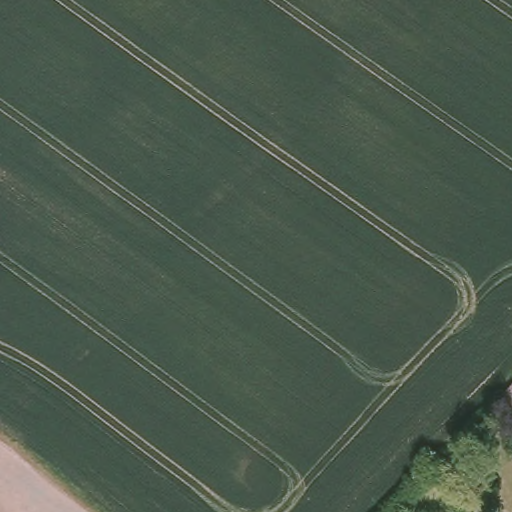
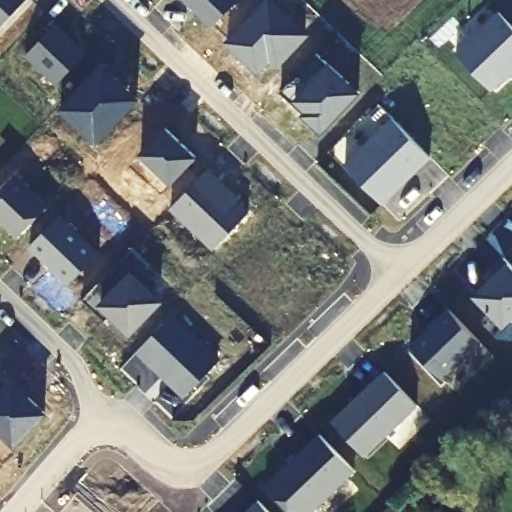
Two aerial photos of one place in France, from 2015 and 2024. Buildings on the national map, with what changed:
new [(0,26),(0,0),(25,0),(0,26)]
new [(185,0),(237,0),(213,27),(185,0)]
new [(227,40),(267,0),(273,0),(311,34),(279,67),(272,60),(259,74),(227,40)]
new [(499,11),(512,24),(512,75),(506,81),(503,78),(492,90),(456,53),(499,11)]
new [(26,55),(57,24),(88,52),(57,85),(26,55)]
new [(302,114),(305,111),(294,101),(282,90),(318,52),(330,62),(362,92),(323,133),(302,114)]
new [(59,107),(104,63),(141,98),(98,144),(59,107)]
new [(344,164),(393,117),(433,157),(384,204),(344,164)]
new [(140,153),(166,127),(198,157),(172,184),(140,153)]
new [(171,208),(211,168),(241,197),(238,200),(250,211),(214,249),(171,208)]
new [(0,220),(0,191),(18,173),(50,204),(17,236),(0,220)]
new [(30,247),(61,215),(100,253),(69,284),(30,247)]
new [(110,315),(106,319),(84,297),(134,246),(152,264),(139,276),(165,300),(132,335),(110,315)]
new [(510,261),(512,264),(512,319),(504,327),(473,294),(510,261)]
new [(411,345),(451,307),(484,341),(444,380),(411,345)]
new [(137,351),(174,311),(222,357),(185,396),(137,351)]
new [(332,422),(384,370),(418,405),(366,456),(332,422)]
new [(0,435),(0,389),(11,378),(48,412),(14,448),(0,435)]
unchanged [(493,399),(512,378),(512,408),(506,415),(493,399)]
new [(320,433),(356,469),(312,512),(290,512),(264,488),(320,433)]
new [(271,512),(245,512),(259,499),(271,512)]

